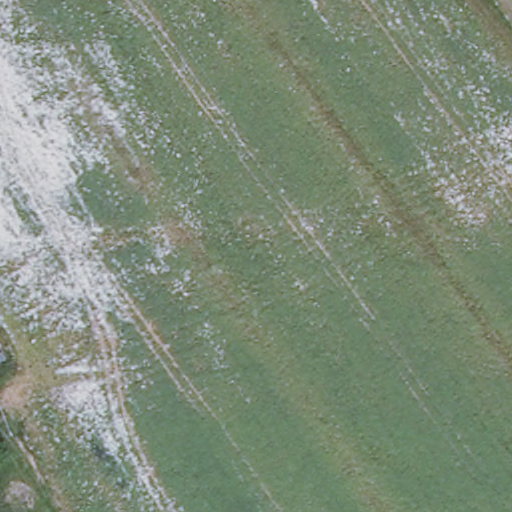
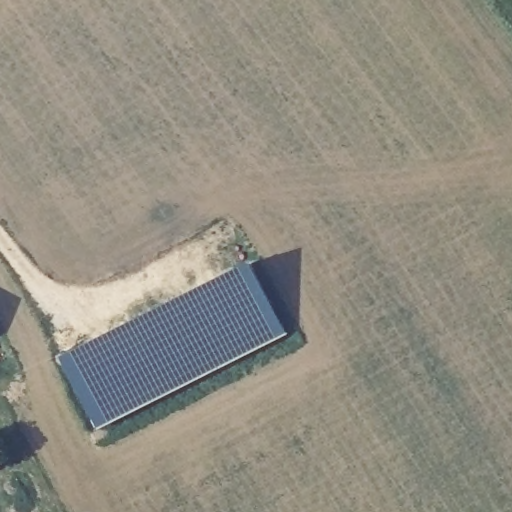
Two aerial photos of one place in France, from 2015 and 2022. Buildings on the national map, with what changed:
new [(287,333),(97,430),(61,358),(250,263),(287,333)]

